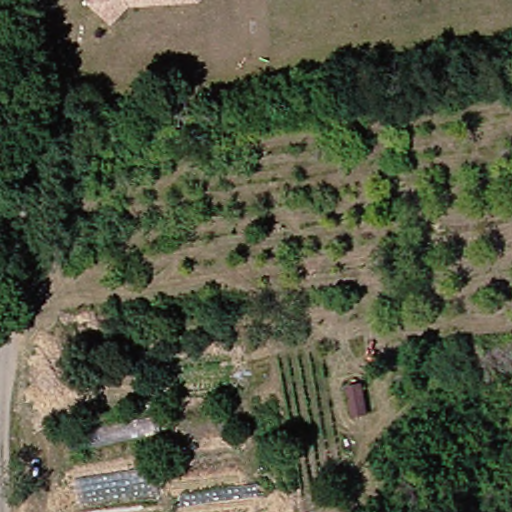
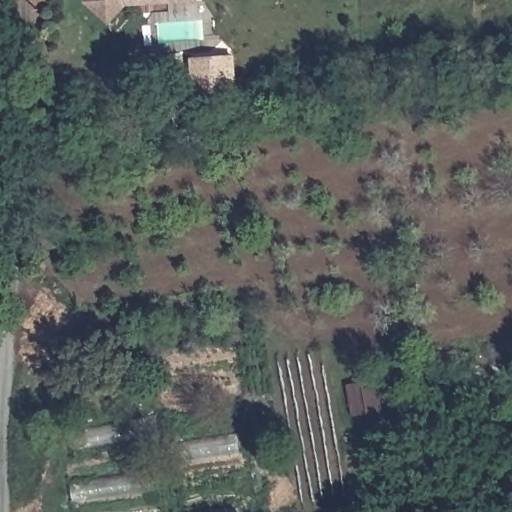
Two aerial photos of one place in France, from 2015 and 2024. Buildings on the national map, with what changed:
unchanged [(89,2),(90,0),(123,0),(107,19),(89,2)]
unchanged [(112,24),(107,19),(123,0),(187,0),(129,5),(112,24)]
new [(193,90),(190,56),(230,54),(233,88),(229,88),(197,90),(193,90)]

